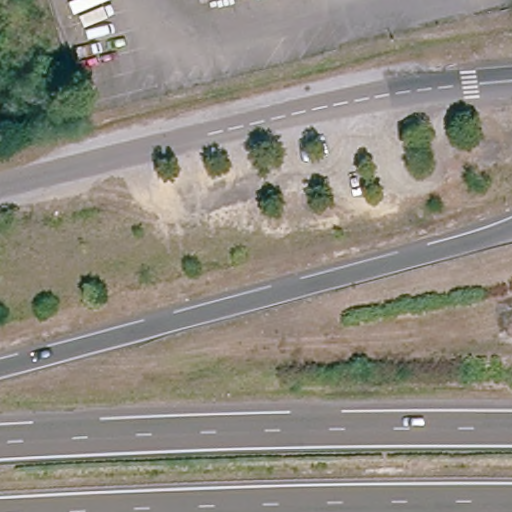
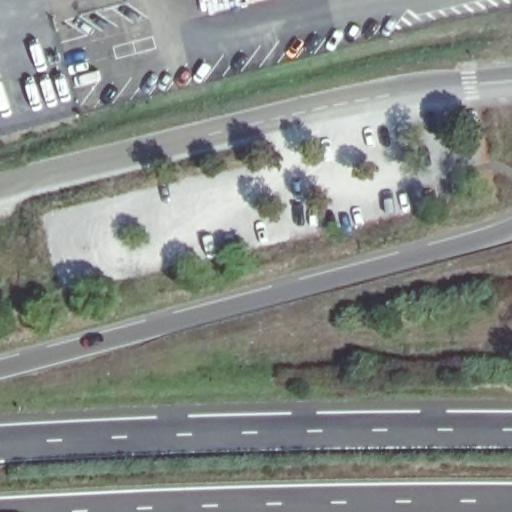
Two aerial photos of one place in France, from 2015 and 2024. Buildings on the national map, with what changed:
unchanged [(211,2),(210,0),(218,0),(211,2)]

